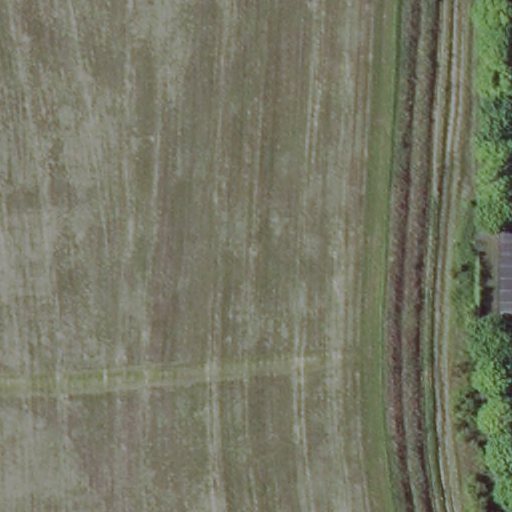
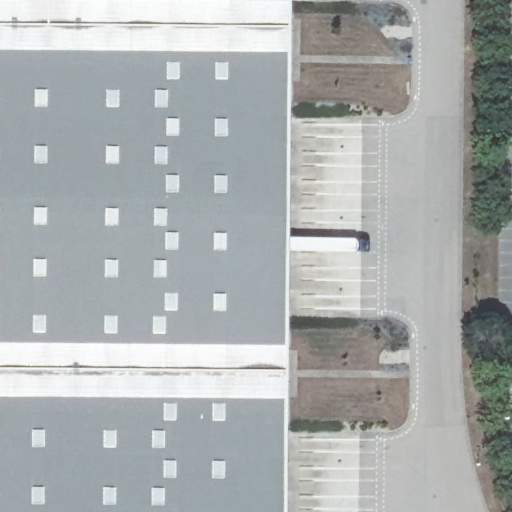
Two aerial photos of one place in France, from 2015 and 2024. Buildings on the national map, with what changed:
new [(284,512),(0,512),(0,0),(288,0),(284,512)]

